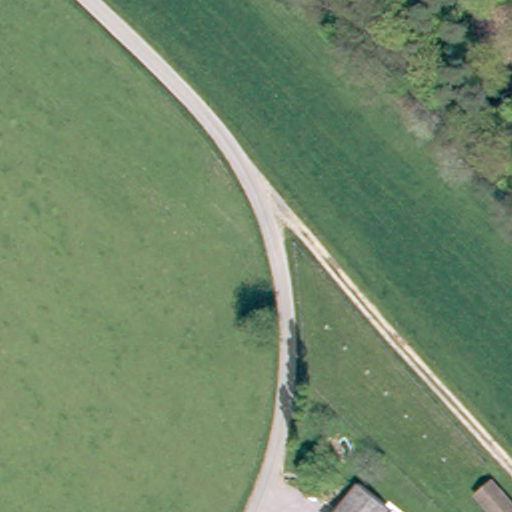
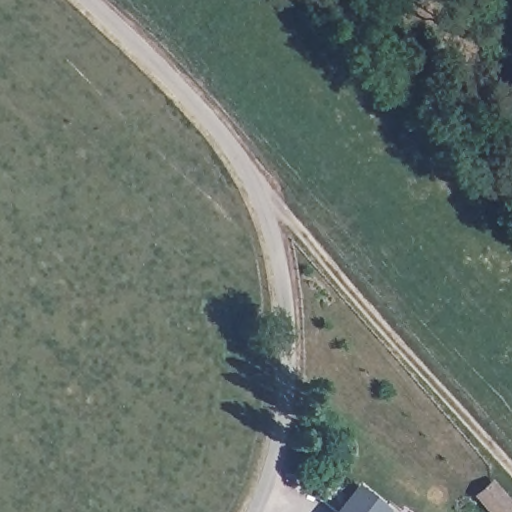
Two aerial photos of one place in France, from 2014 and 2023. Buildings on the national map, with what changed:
unchanged [(496,482),(512,500),(512,512),(491,512),(479,498),(496,482)]
unchanged [(389,509),(386,512),(349,512),(367,490),(389,509)]

